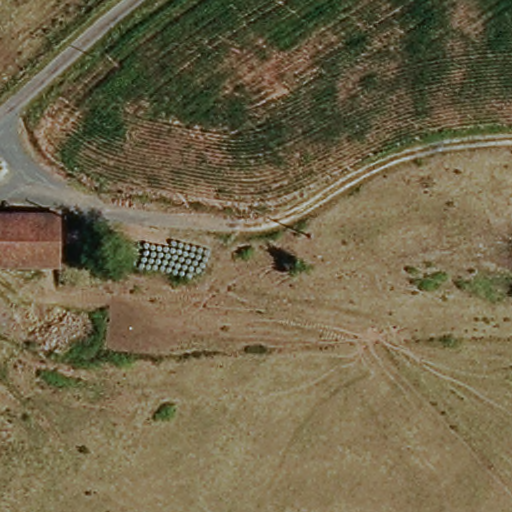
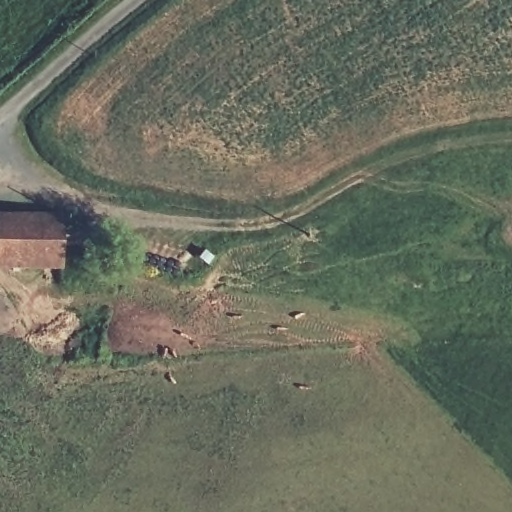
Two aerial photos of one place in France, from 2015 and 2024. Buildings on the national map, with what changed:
unchanged [(64,274),(0,272),(0,222),(65,219),(64,274)]

